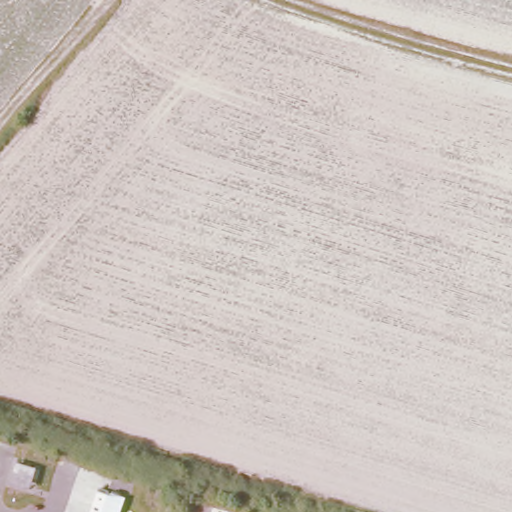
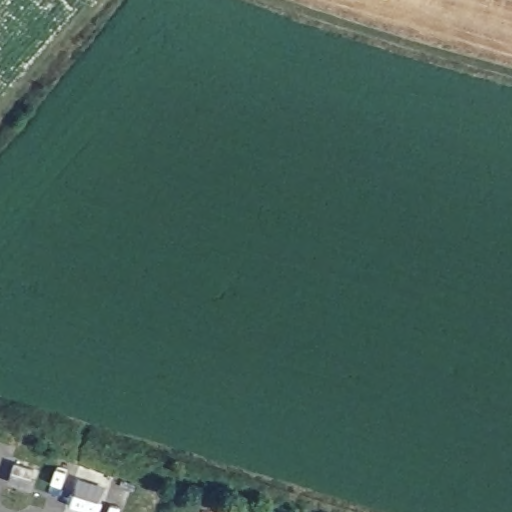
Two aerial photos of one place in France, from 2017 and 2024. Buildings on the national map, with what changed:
unchanged [(11,479),(13,471),(15,462),(34,466),(31,475),(29,483),(11,479)]

